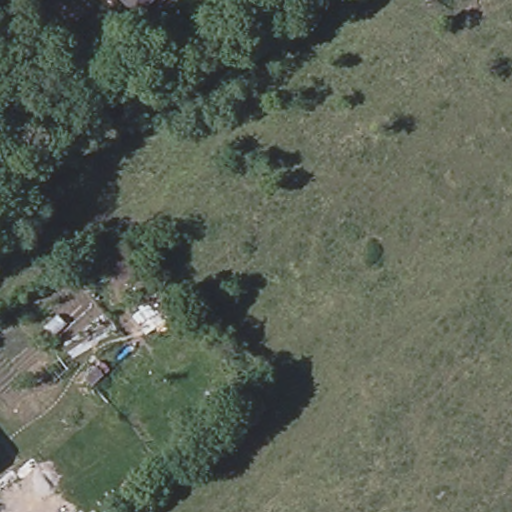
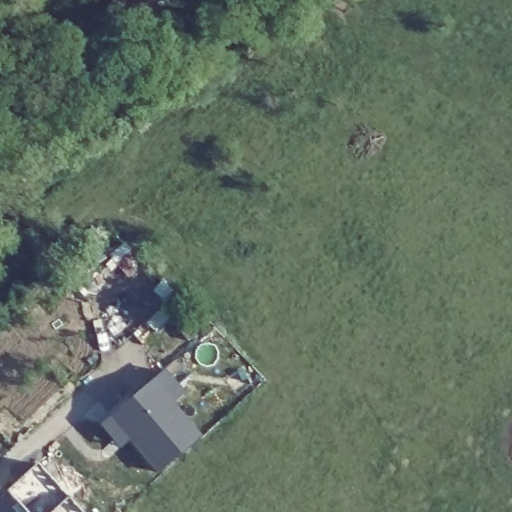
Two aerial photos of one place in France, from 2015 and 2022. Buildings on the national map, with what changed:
unchanged [(116,0),(146,0),(130,15),(116,0)]
new [(163,370),(186,394),(173,404),(201,438),(157,474),(128,441),(118,449),(98,426),(163,370)]

